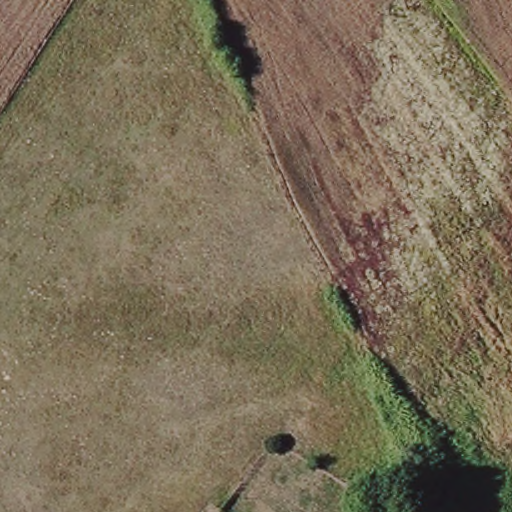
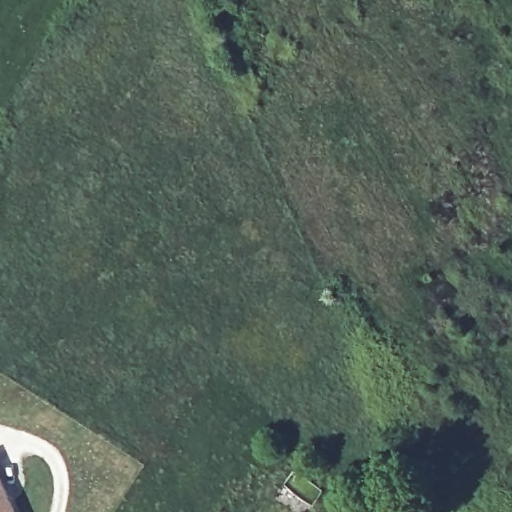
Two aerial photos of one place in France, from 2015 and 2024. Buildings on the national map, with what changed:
new [(0,476),(16,512),(0,512),(0,476)]

